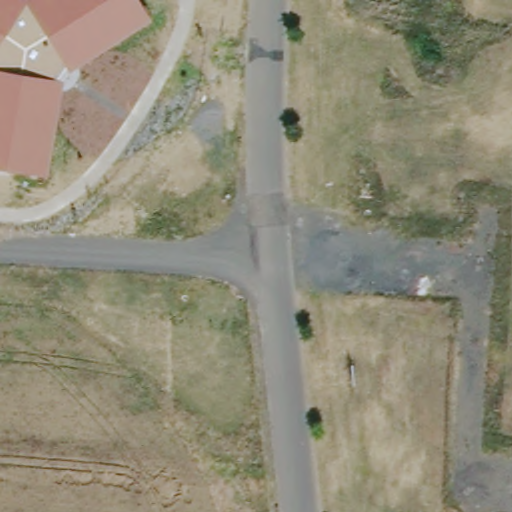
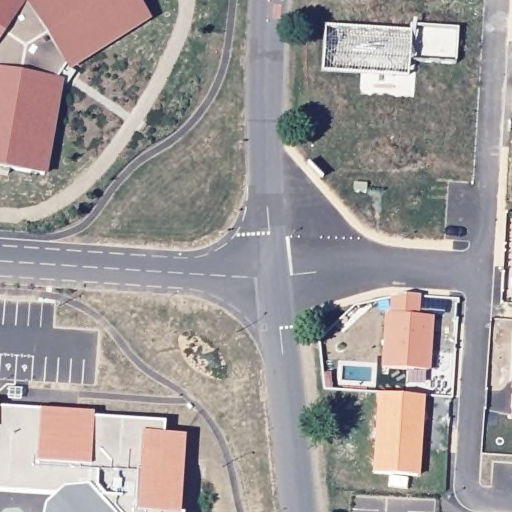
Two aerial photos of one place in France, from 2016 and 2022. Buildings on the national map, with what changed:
unchanged [(68,71),(65,66),(56,81),(62,81),(47,175),(0,167),(0,0),(138,0),(152,20),(68,71)]
new [(412,21),(458,25),(456,60),(412,58),(411,74),(322,69),(325,19),(410,27),(412,21)]
new [(380,365),(385,293),(422,292),(420,312),(437,315),(431,366),(380,365)]
new [(510,414),(512,372),(512,414),(510,414)]
new [(422,473),(372,470),(374,390),(427,392),(422,473)]
new [(44,505),(55,495),(0,492),(0,408),(92,413),(93,417),(165,421),(164,435),(184,435),(180,512),(42,512),(44,505)]

